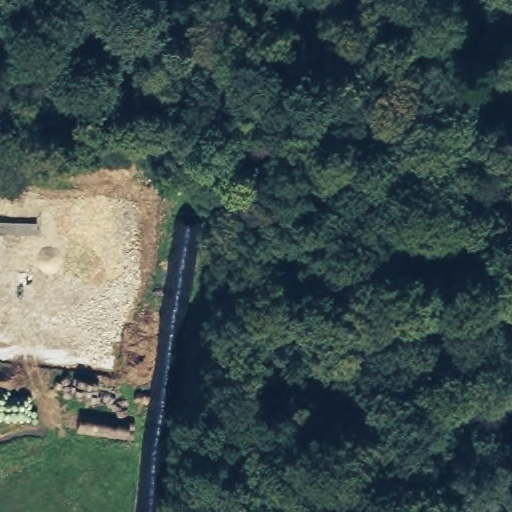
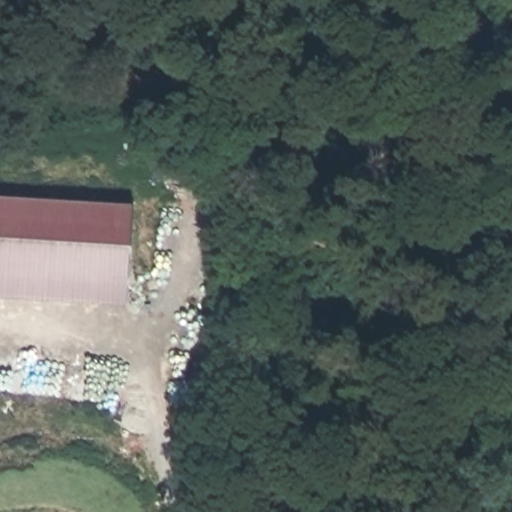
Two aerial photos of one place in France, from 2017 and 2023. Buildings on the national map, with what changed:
new [(132,202),(127,304),(0,296),(0,194),(132,202)]

